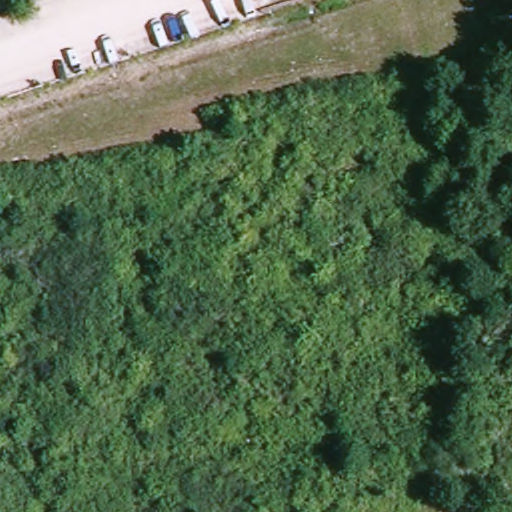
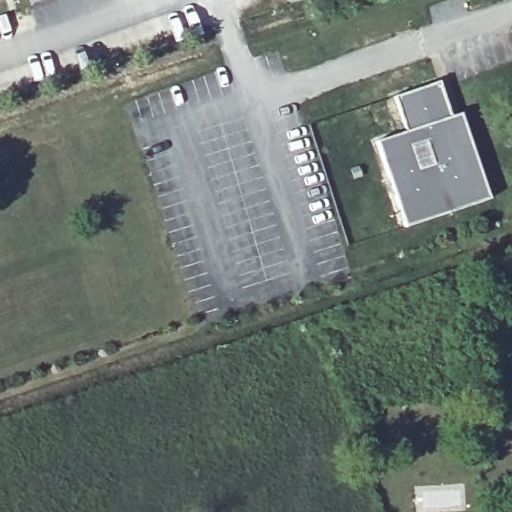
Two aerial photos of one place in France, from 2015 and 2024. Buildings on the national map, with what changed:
unchanged [(30,0),(46,0),(32,5),(30,0)]
new [(396,96),(440,81),(452,116),(462,112),(467,127),(491,199),(407,227),(378,141),(407,131),(396,96)]

